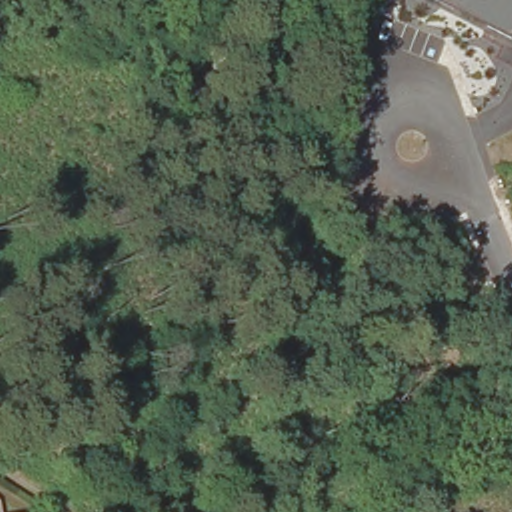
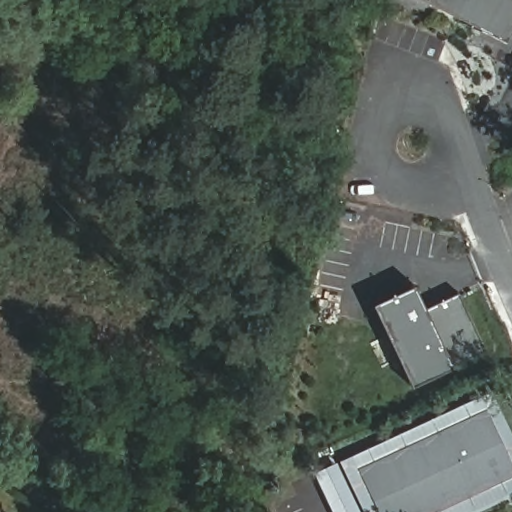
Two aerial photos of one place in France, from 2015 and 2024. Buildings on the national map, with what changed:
unchanged [(512,33),(512,43),(508,50),(476,33),(480,25),(429,0),(512,0),(512,26),(510,31),(512,33)]
new [(482,350),(411,384),(374,302),(412,284),(425,307),(457,292),(482,350)]
new [(512,437),(512,490),(465,512),(333,512),(314,472),(490,391),(512,437)]

